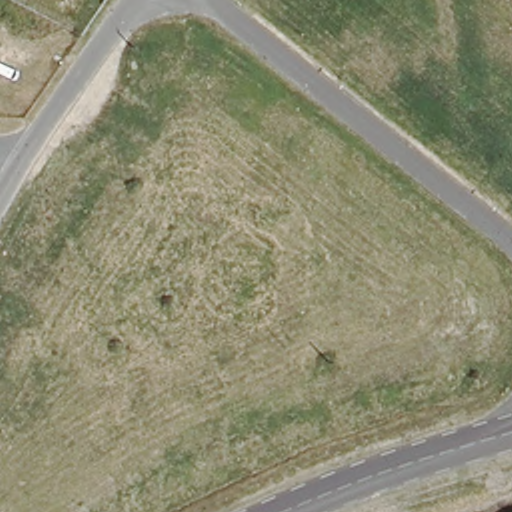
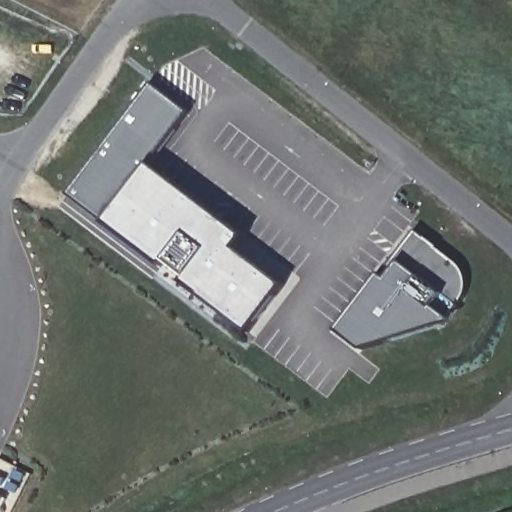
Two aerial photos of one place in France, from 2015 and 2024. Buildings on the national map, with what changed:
new [(244,254),(291,291),(254,339),(187,287),(192,281),(172,267),(167,272),(71,197),(158,86),(196,116),(157,166),(252,242),(244,254)]
new [(367,350),(341,330),(385,273),(393,279),(413,253),(407,248),(420,231),(442,247),(441,249),(463,266),(465,269),(469,276),(470,285),(470,289),(467,296),(465,300),(460,304),(461,305),(445,325),(367,350)]
new [(393,279),(386,274),(407,248),(413,253),(393,279)]
new [(6,444),(0,459),(0,441),(6,444)]
new [(22,497),(16,512),(0,512),(0,486),(22,497)]

